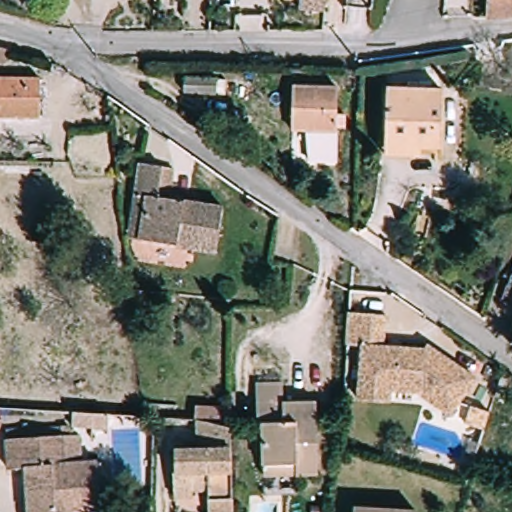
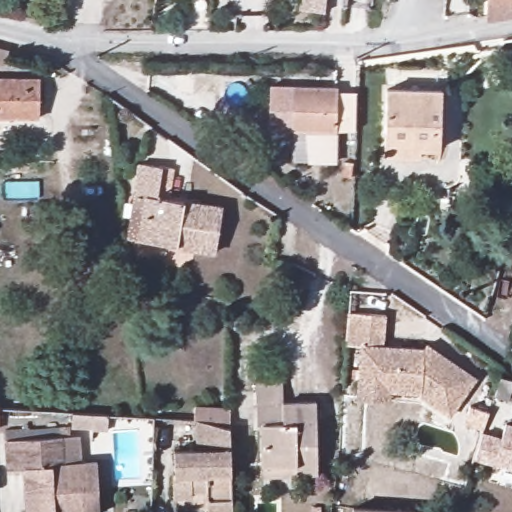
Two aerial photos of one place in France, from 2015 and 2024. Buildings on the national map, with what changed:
unchanged [(299,0),(324,0),(323,12),(298,9),(299,0)]
unchanged [(486,0),(512,0),(512,15),(486,19),(486,0)]
unchanged [(6,60),(0,59),(0,43),(10,46),(6,60)]
unchanged [(0,113),(0,74),(44,74),(44,98),(43,112),(30,112),(0,113)]
unchanged [(296,136),(296,121),(298,76),(341,77),(339,122),(338,137),(296,136)]
unchanged [(223,95),(213,94),(183,93),(183,78),(213,78),(224,78),(223,95)]
unchanged [(388,156),(389,146),(390,88),(446,90),(444,148),(422,147),(422,157),(388,156)]
unchanged [(138,158),(159,162),(171,164),(167,194),(221,202),(214,249),(136,237),(126,235),(133,189),(138,158)]
unchanged [(357,395),(358,379),(359,375),(361,342),(346,341),(346,330),(348,308),(385,311),(383,342),(408,344),(424,345),(426,341),(476,374),(452,411),(419,390),(419,388),(402,387),(388,386),(387,397),(357,395)]
unchanged [(266,464),(266,426),(261,425),(259,384),(286,383),(286,403),(321,402),(323,474),(299,475),(267,475),(266,464)]
unchanged [(209,482),(193,481),(193,494),(174,493),(174,468),(176,467),(176,449),(199,448),(199,420),(200,419),(200,401),(234,401),(233,421),(236,512),(210,512),(209,482)]
new [(474,460),(483,432),(502,436),(506,423),(512,425),(512,470),(474,460)]
unchanged [(93,462),(97,512),(26,512),(21,469),(5,470),(3,430),(21,429),(57,426),(58,438),(65,437),(66,446),(58,446),(59,464),(93,462)]
unchanged [(353,508),(415,511),(415,512),(352,512),(353,508)]

